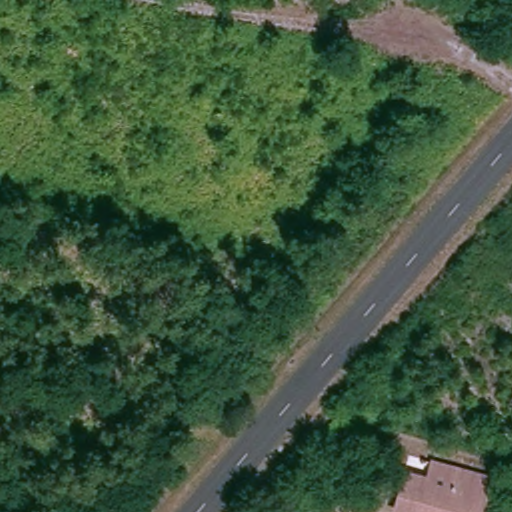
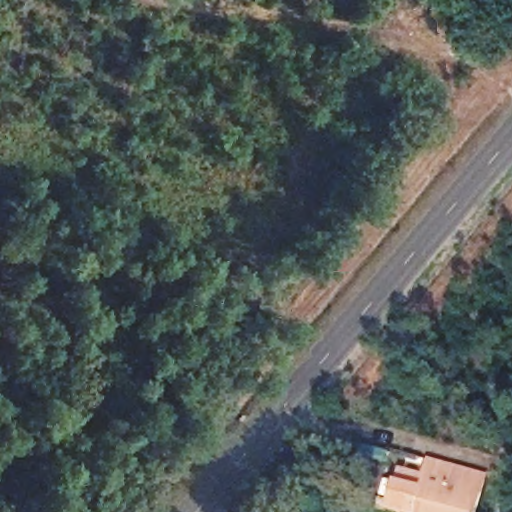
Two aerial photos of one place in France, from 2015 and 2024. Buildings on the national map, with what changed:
unchanged [(411,463),(431,471),(488,491),(480,512),(393,512),(404,485),(411,463)]

